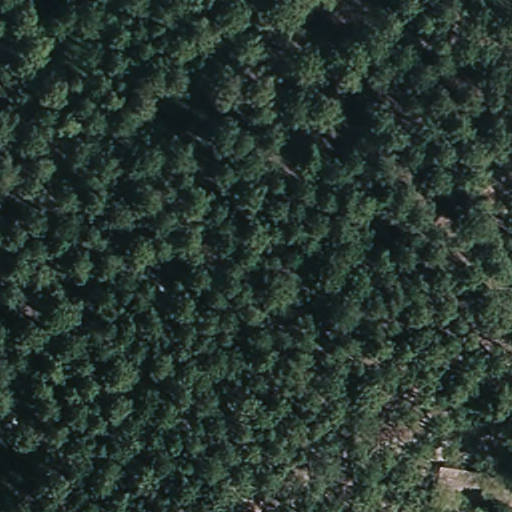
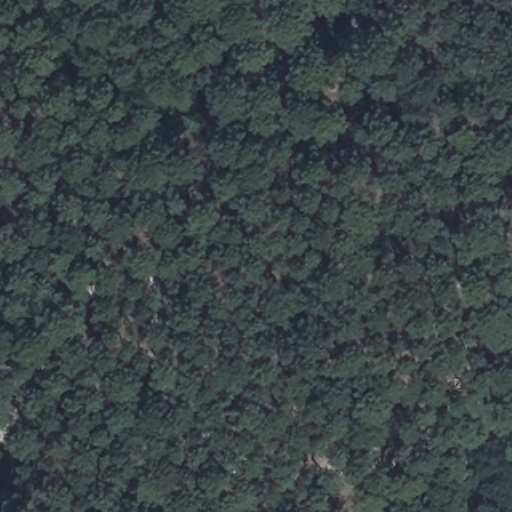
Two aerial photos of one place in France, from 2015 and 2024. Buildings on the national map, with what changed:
unchanged [(5,432),(0,444),(0,403),(14,409),(5,432)]
unchanged [(442,470),(476,473),(470,512),(434,512),(442,470)]

